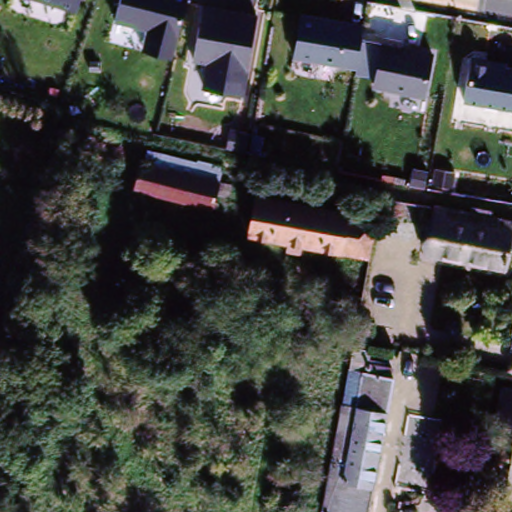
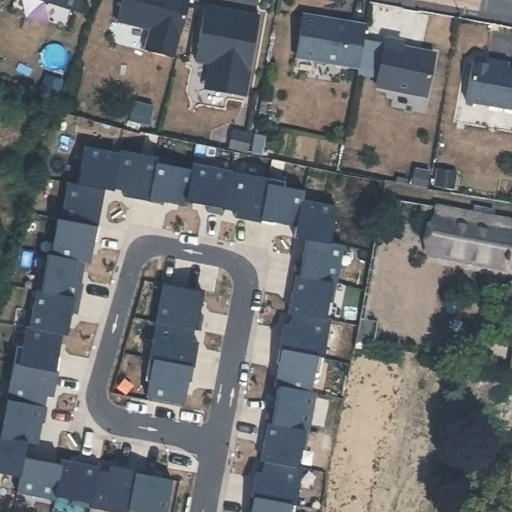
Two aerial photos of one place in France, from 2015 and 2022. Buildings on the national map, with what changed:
unchanged [(82,5),(65,0),(83,0),(82,5)]
unchanged [(173,60),(143,52),(149,31),(115,23),(121,0),(187,0),(173,60)]
unchanged [(261,8),(251,68),(199,58),(208,0),(211,0),(261,8)]
unchanged [(296,53),(307,7),(367,18),(359,62),(296,53)]
unchanged [(376,80),(385,36),(442,46),(430,93),(376,80)]
unchanged [(469,97),(477,59),(512,65),(512,105),(469,97)]
new [(327,244),(342,247),(335,284),(331,282),(322,320),(329,320),(321,359),(315,358),(309,392),(316,392),(309,433),(303,430),(296,465),(302,467),(293,506),(288,505),(287,512),(249,512),(252,496),(249,496),(254,472),(260,474),(263,462),(258,461),(281,325),(287,326),(289,314),(285,313),(293,277),(298,277),(304,240),(291,237),(293,227),(233,217),(235,212),(222,209),(184,204),(183,207),(149,200),(148,202),(122,198),(124,192),(111,187),(110,192),(101,191),(94,227),(89,265),(82,264),(78,284),(81,285),(76,315),(68,311),(64,336),(60,335),(53,371),(56,372),(51,399),(46,396),(36,446),(24,441),(21,456),(58,464),(59,461),(97,467),(170,479),(164,512),(137,512),(126,510),(126,512),(108,512),(86,508),(88,503),(53,496),(52,501),(15,494),(18,476),(0,474),(0,430),(5,401),(12,364),(18,366),(24,328),(27,328),(34,290),(40,291),(46,254),(49,256),(56,220),(66,183),(74,182),(84,150),(118,154),(154,158),(153,164),(190,171),(192,164),(229,170),(228,174),(266,179),(265,185),(302,191),(299,202),(334,208),(327,244)]
demolished [(226,210),(129,185),(136,157),(228,182),(223,198),(229,199),(226,210)]
demolished [(344,247),(343,252),(305,247),(304,254),(291,252),(292,245),(252,239),(259,198),(349,213),(349,217),(344,247)]
unchanged [(511,265),(447,252),(449,241),(435,238),(440,204),(512,219),(512,262),(511,265)]
new [(144,397),(151,359),(151,356),(146,356),(154,322),(162,286),(200,292),(193,330),(190,343),(196,344),(192,368),(189,367),(182,405),(144,397)]
unchanged [(370,323),(375,324),(371,343),(370,348),(365,347),(355,345),(356,341),(360,321),(370,323)]
unchanged [(365,373),(355,422),(350,423),(338,478),(344,479),(337,512),(326,512),(327,508),(322,508),(341,413),(350,372),(355,347),(364,349),(369,350),(367,363),(377,364),(375,375),(365,373)]
unchanged [(338,478),(350,423),(355,422),(365,373),(375,375),(377,364),(389,367),(392,367),(390,376),(392,377),(392,378),(366,512),(337,512),(344,479),(338,478)]
demolished [(501,512),(512,460),(512,512),(501,512)]

